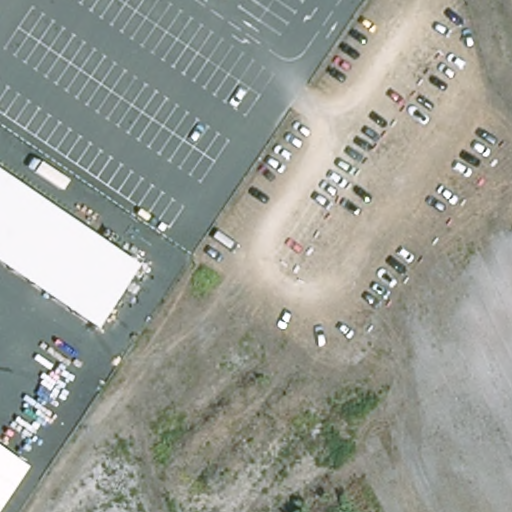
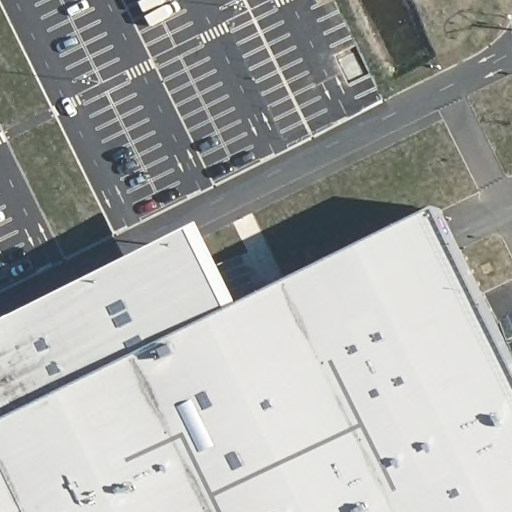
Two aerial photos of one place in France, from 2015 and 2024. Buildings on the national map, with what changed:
new [(40,318),(90,299),(91,301),(114,295),(167,281),(196,275),(220,322),(442,211),(512,353),(512,512),(0,512),(0,336),(40,318)]
demolished [(0,500),(0,448),(24,464),(0,500)]

